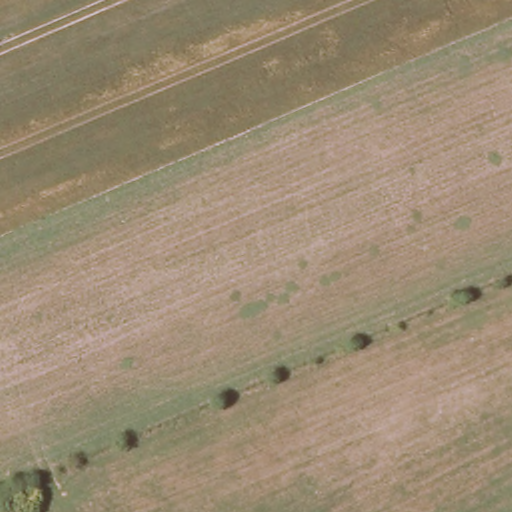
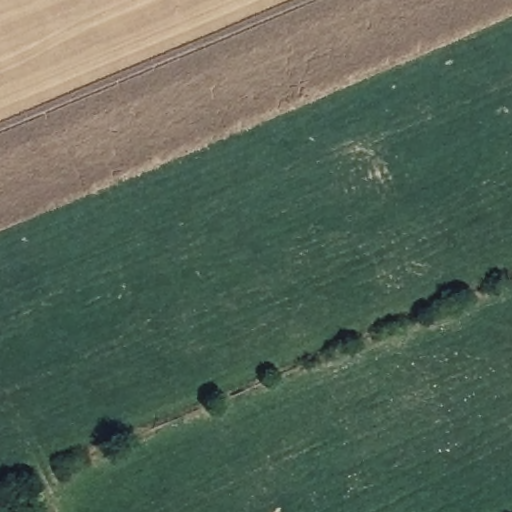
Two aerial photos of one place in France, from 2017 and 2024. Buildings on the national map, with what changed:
[]

